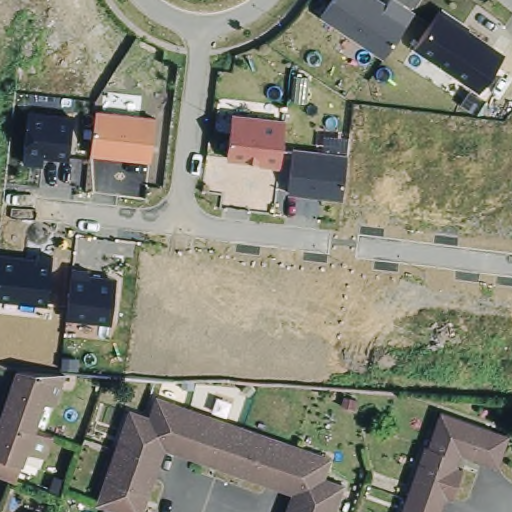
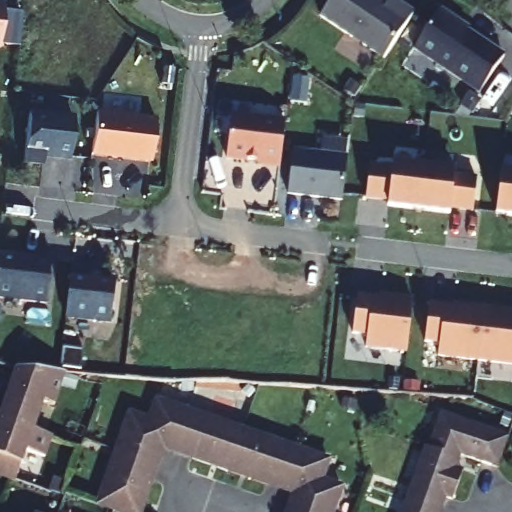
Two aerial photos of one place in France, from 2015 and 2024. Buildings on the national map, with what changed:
unchanged [(315,18),(327,0),(380,0),(381,0),(397,0),(412,9),(383,58),(315,18)]
new [(0,3),(3,3),(2,10),(21,12),(18,46),(0,44),(0,3)]
unchanged [(477,91),(411,46),(437,9),(501,56),(477,91)]
unchanged [(89,155),(91,108),(153,116),(147,162),(89,155)]
unchanged [(38,158),(38,166),(22,167),(26,110),(68,113),(67,160),(38,158)]
unchanged [(275,166),(225,158),(227,114),(281,120),(275,166)]
unchanged [(338,199),(286,191),(292,148),(342,153),(338,199)]
new [(418,212),(387,208),(388,203),(365,201),(369,168),(392,171),(392,166),(423,170),(418,212)]
new [(512,170),(512,212),(497,210),(502,169),(512,170)]
new [(455,173),(454,178),(476,181),(472,213),(450,211),(450,216),(418,212),(423,170),(455,173)]
unchanged [(0,251),(48,255),(46,305),(0,302),(0,251)]
unchanged [(66,322),(70,270),(111,274),(108,325),(66,322)]
new [(406,355),(365,350),(367,338),(352,336),(356,300),(380,303),(380,300),(412,303),(406,355)]
new [(451,312),(452,308),(484,312),(477,364),(437,358),(439,346),(425,345),(428,309),(451,312)]
new [(512,316),(512,368),(477,364),(484,312),(512,316)]
unchanged [(1,423),(7,404),(18,369),(77,375),(66,410),(44,402),(33,433),(1,423)]
unchanged [(127,412),(148,419),(155,396),(196,410),(183,450),(163,444),(156,464),(115,450),(127,412)]
unchanged [(196,410),(239,425),(226,465),(183,450),(196,410)]
unchanged [(462,458),(456,475),(462,477),(457,490),(454,499),(447,497),(442,512),(398,512),(421,443),(427,445),(438,412),(507,436),(500,460),(497,466),(485,462),(463,455),(462,458)]
unchanged [(55,440),(48,462),(25,454),(17,477),(16,482),(0,477),(0,426),(1,423),(33,433),(55,440)]
unchanged [(269,480),(226,465),(239,425),(282,440),(269,480)]
unchanged [(296,489),(269,480),(282,440),(327,455),(321,475),(344,483),(334,512),(299,512),(289,508),(296,489)]
unchanged [(156,464),(140,512),(136,512),(116,505),(98,499),(113,454),(115,450),(156,464)]
unchanged [(299,512),(288,512),(289,508),(299,512)]

